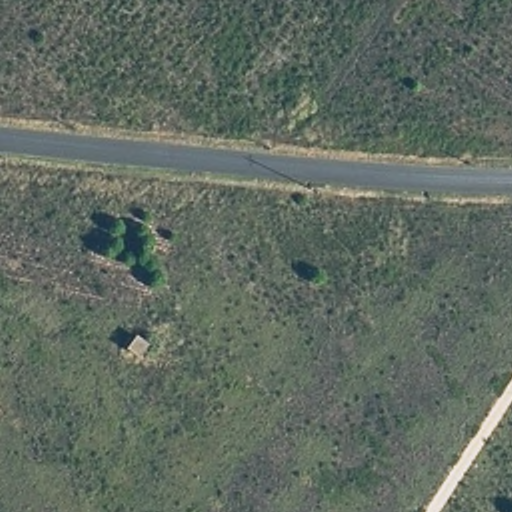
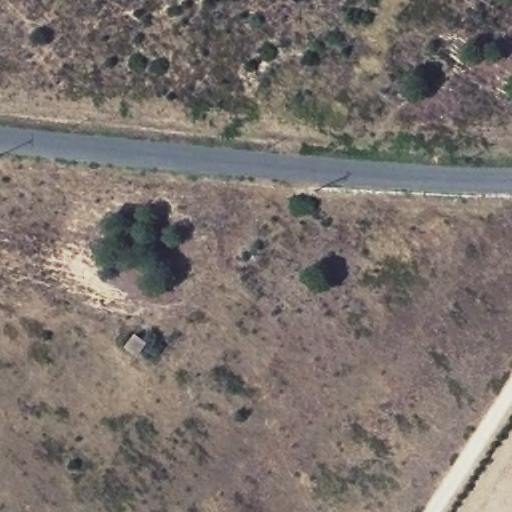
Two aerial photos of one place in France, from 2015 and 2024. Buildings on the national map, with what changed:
unchanged [(144,346),(135,358),(122,349),(131,334),(144,346)]

